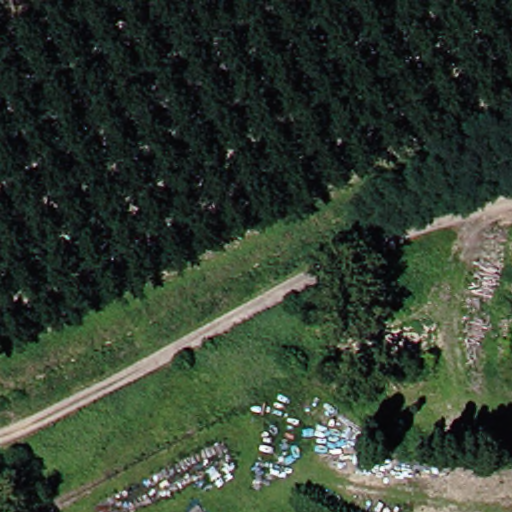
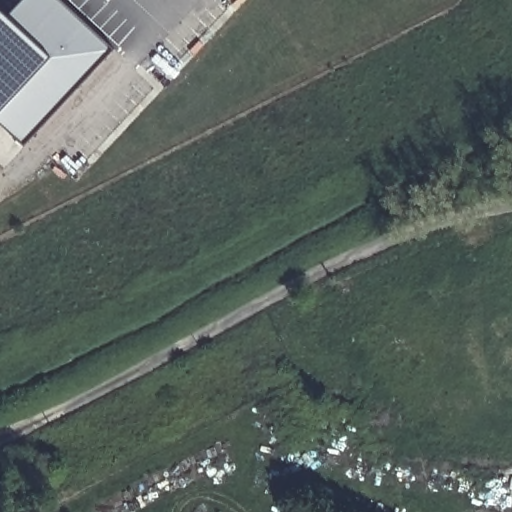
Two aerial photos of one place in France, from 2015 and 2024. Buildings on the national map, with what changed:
new [(0,9),(9,17),(24,0),(60,0),(114,50),(25,145),(0,122),(0,9)]
demolished [(511,293),(512,272),(512,294),(511,293)]

